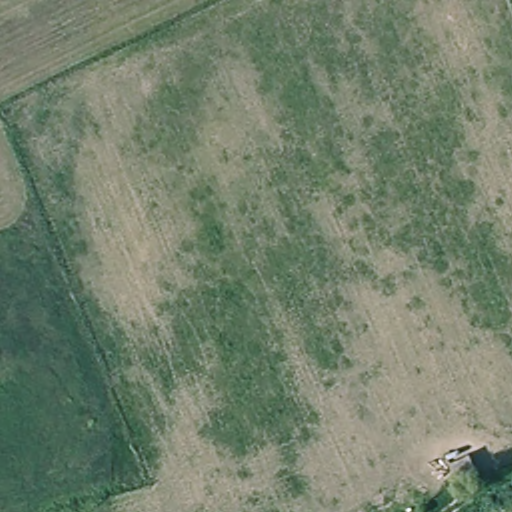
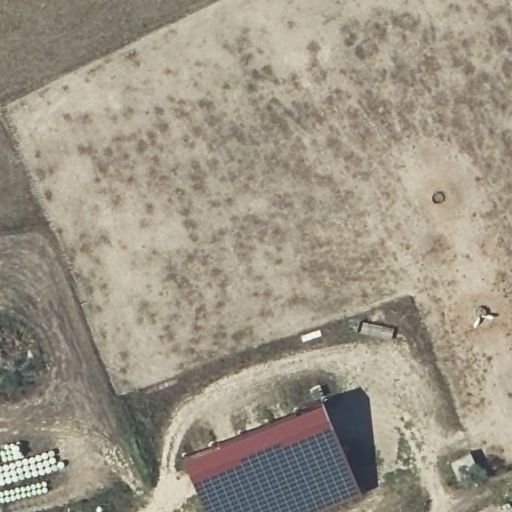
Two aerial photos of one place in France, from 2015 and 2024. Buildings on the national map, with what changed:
new [(207,512),(183,454),(323,396),(361,490),(307,512),(207,512)]
unchanged [(480,474),(459,484),(452,466),(471,456),(480,474)]

